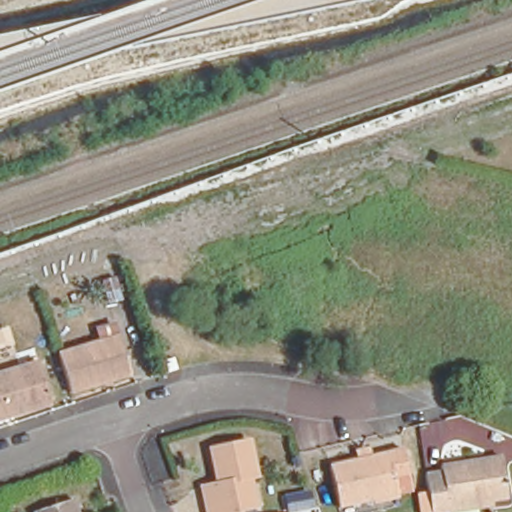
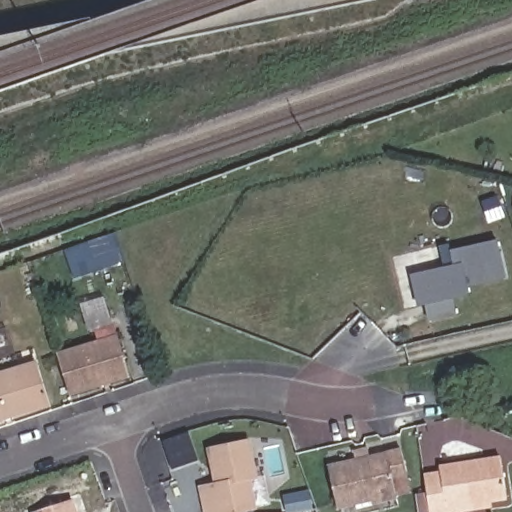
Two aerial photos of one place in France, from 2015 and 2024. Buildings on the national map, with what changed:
new [(125,264),(74,279),(65,249),(116,234),(125,264)]
demolished [(92,265),(87,249),(85,245),(100,240),(101,244),(106,260),(92,265)]
new [(452,265),(449,250),(497,240),(505,277),(466,286),(467,295),(453,297),(456,315),(426,321),(423,305),(417,306),(410,275),(452,265)]
unchanged [(119,336),(130,375),(70,394),(58,355),(119,336)]
unchanged [(37,409),(0,421),(0,374),(24,367),(37,409)]
unchanged [(202,487),(214,485),(219,483),(216,472),(211,450),(250,441),(257,476),(250,478),(256,508),(240,511),(241,512),(208,512),(202,487)]
unchanged [(401,455),(411,451),(419,479),(407,481),(411,496),(395,499),(395,500),(345,512),(341,512),(331,473),(355,466),(352,455),(370,450),(372,462),(386,458),(401,455)]
unchanged [(416,502),(430,500),(426,481),(444,477),(443,472),(502,462),(508,504),(490,506),(491,512),(418,512),(416,502)]
unchanged [(71,500),(75,512),(34,512),(71,500)]

